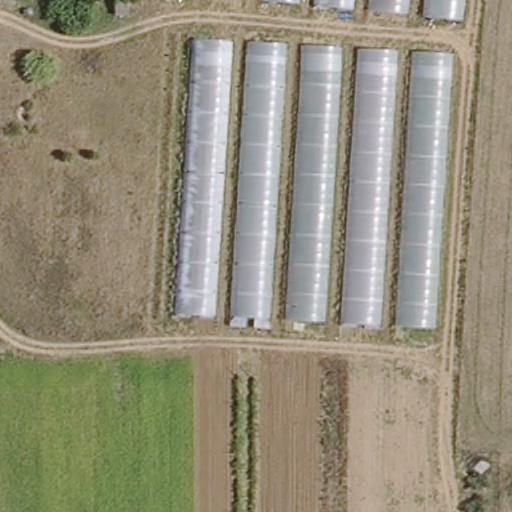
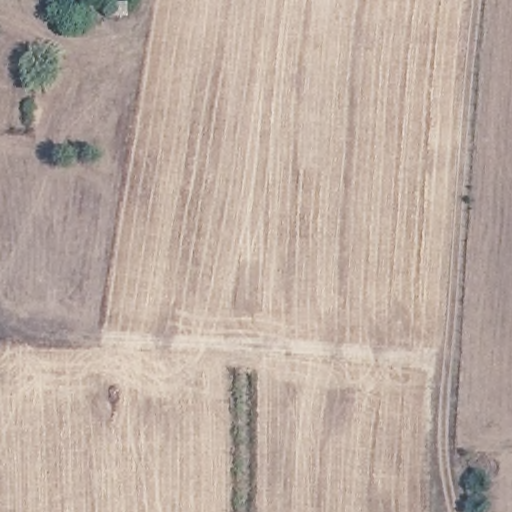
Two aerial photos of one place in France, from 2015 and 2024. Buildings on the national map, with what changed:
demolished [(468,22),(274,0),(470,0),(468,22)]
demolished [(198,34),(460,50),(442,329),(178,317),(198,34)]

